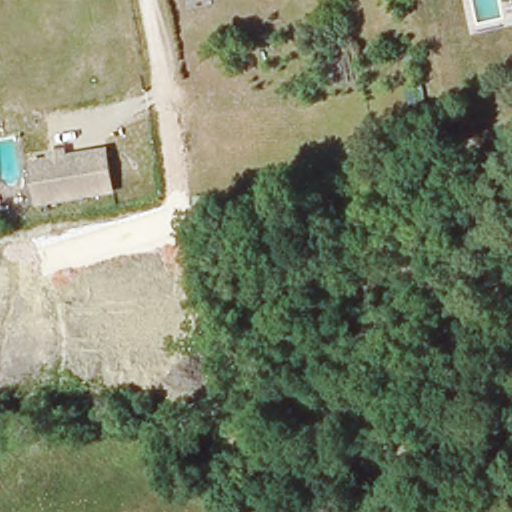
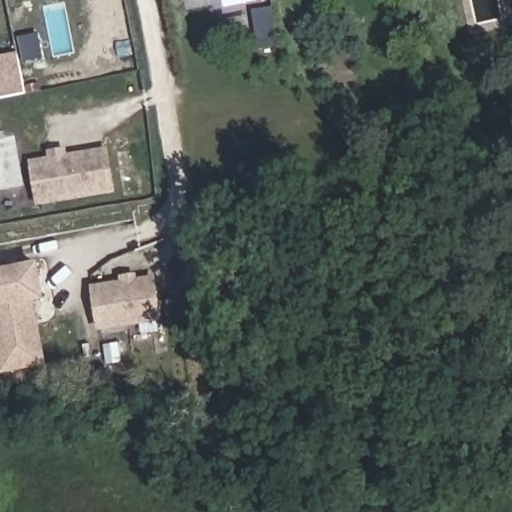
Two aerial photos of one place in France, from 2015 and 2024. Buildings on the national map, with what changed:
unchanged [(322,80),(317,53),(350,48),(353,76),(322,80)]
new [(26,94),(0,99),(0,56),(17,53),(26,94)]
unchanged [(116,193),(42,207),(34,168),(54,164),(52,157),(64,154),(66,161),(107,154),(116,193)]
new [(1,374),(0,372),(0,268),(39,260),(47,300),(35,302),(47,364),(1,374)]
new [(158,321),(160,332),(142,335),(141,324),(97,331),(91,285),(120,281),(119,276),(137,272),(137,278),(155,275),(162,320),(158,321)]

